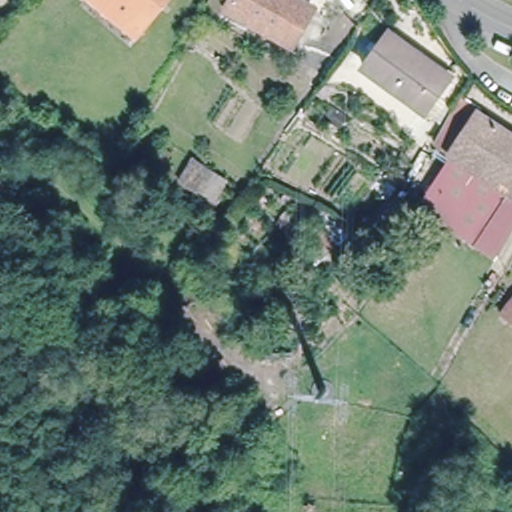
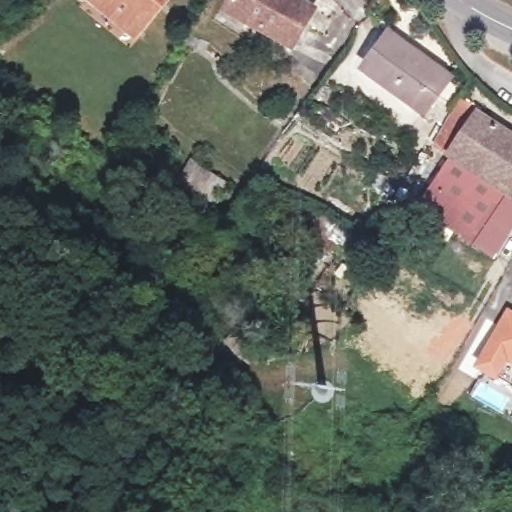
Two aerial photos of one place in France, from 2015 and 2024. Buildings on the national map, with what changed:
unchanged [(138,33),(98,0),(165,0),(138,33)]
unchanged [(275,1),(308,19),(287,57),(222,19),(233,0),(275,0),(275,1)]
unchanged [(448,76),(423,111),(364,69),(389,34),(448,76)]
unchanged [(512,193),(446,150),(437,144),(461,101),(512,135),(512,193)]
unchanged [(509,198),(512,199),(512,224),(490,260),(410,210),(446,150),(512,193),(509,198)]
new [(509,312),(512,313),(512,386),(496,377),(478,366),(509,312)]

